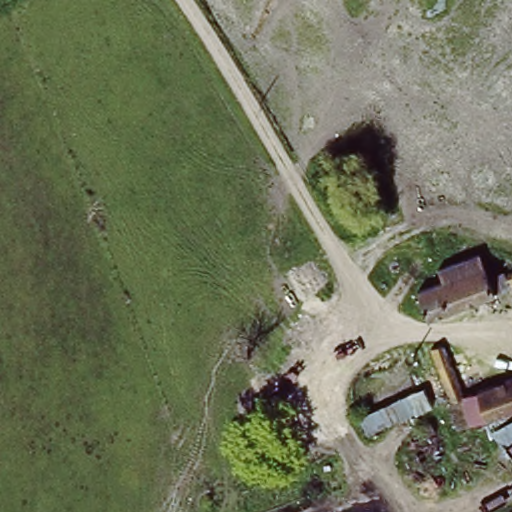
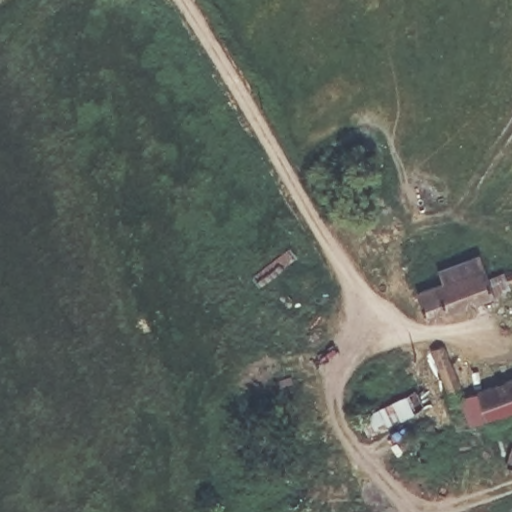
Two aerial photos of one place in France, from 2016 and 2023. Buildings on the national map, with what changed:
unchanged [(413,288),(437,279),(433,267),(474,251),(489,292),(424,317),(413,288)]
unchanged [(504,285),(501,277),(512,273),(512,283),(504,285)]
unchanged [(426,351),(439,344),(450,366),(459,397),(446,402),(426,351)]
unchanged [(459,397),(512,376),(512,409),(470,426),(459,397)]
unchanged [(427,405),(365,434),(356,418),(417,389),(427,405)]

